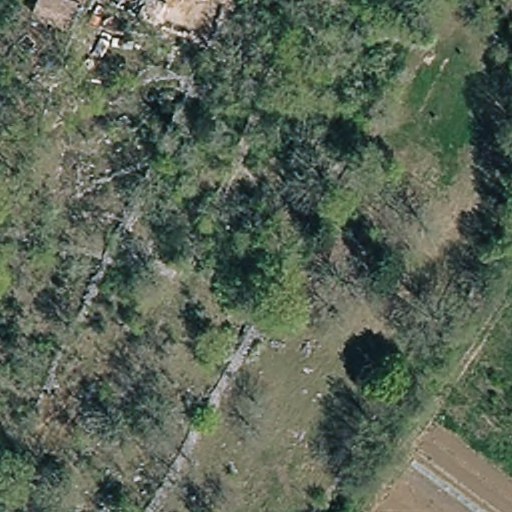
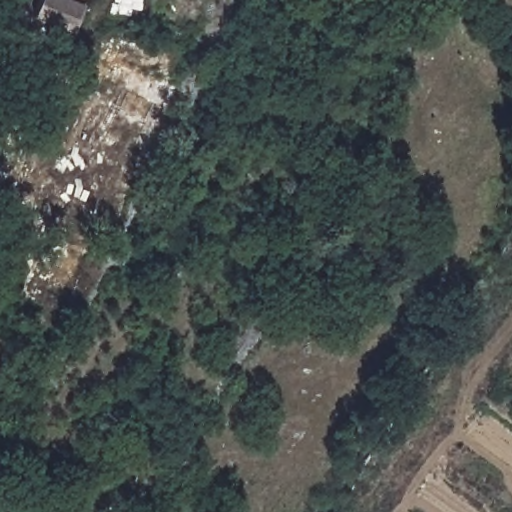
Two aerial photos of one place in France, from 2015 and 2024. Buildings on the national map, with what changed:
unchanged [(71,29),(33,15),(40,0),(77,0),(83,2),(71,29)]

